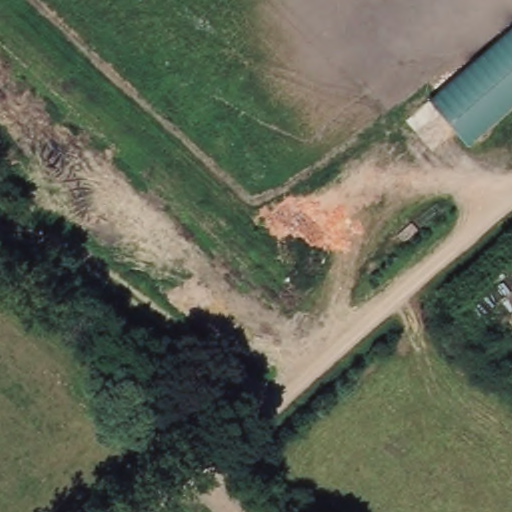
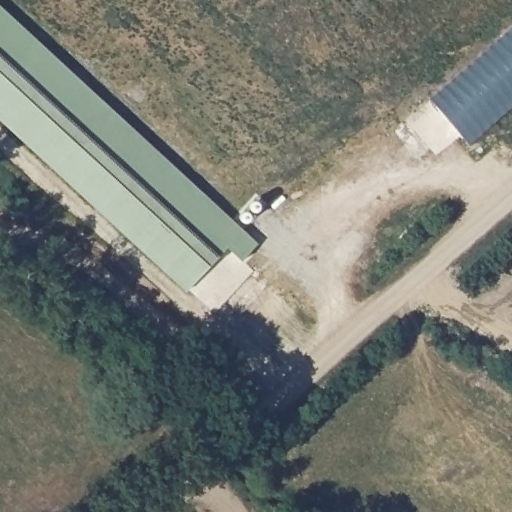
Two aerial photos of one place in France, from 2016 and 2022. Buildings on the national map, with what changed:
new [(243,260),(227,247),(187,290),(0,119),(0,4),(258,241),(243,260)]
unchanged [(512,27),(512,107),(472,141),(433,95),(512,27)]

